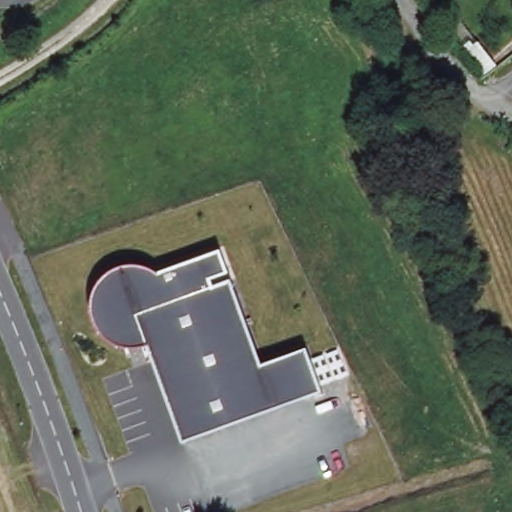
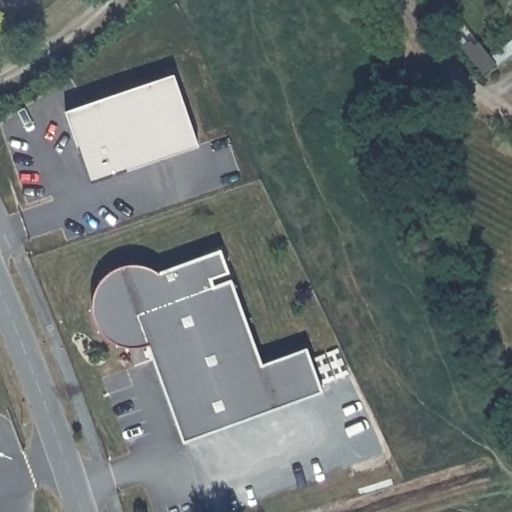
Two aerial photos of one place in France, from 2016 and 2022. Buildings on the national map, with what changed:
new [(174,74),(199,146),(89,183),(65,111),(174,74)]
unchanged [(224,247),(263,363),(308,349),(325,391),(184,446),(150,345),(123,348),(95,326),(93,297),(106,272),(134,262),(159,270),(224,247)]

